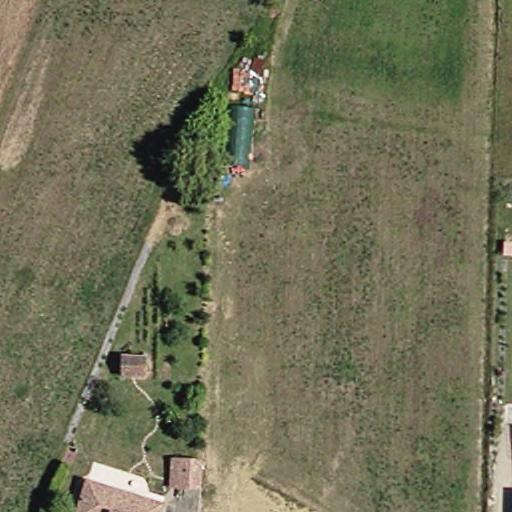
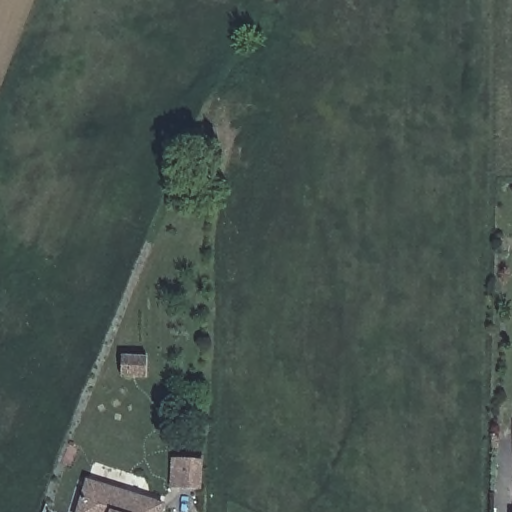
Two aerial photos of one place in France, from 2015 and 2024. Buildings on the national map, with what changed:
unchanged [(136,379),(135,356),(159,356),(160,379),(136,379)]
unchanged [(178,490),(168,489),(168,462),(179,462),(207,462),(207,490),(178,490)]
unchanged [(97,486),(170,508),(169,512),(89,512),(97,486)]

